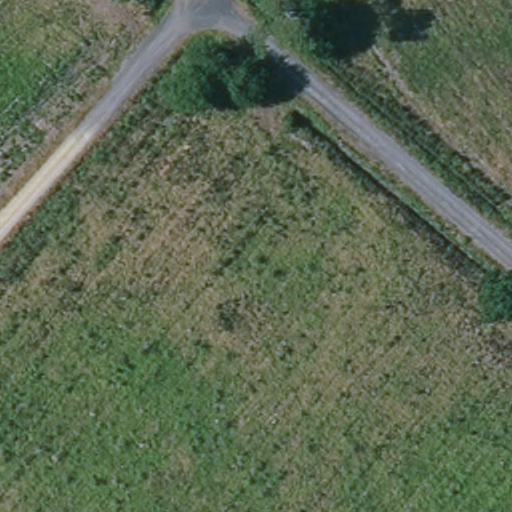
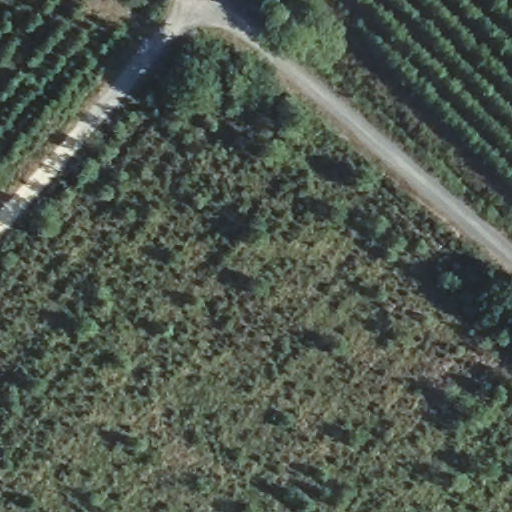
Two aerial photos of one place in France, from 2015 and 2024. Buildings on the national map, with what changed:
[]

